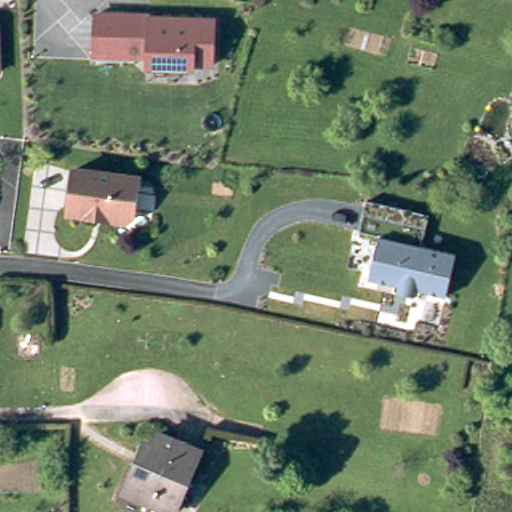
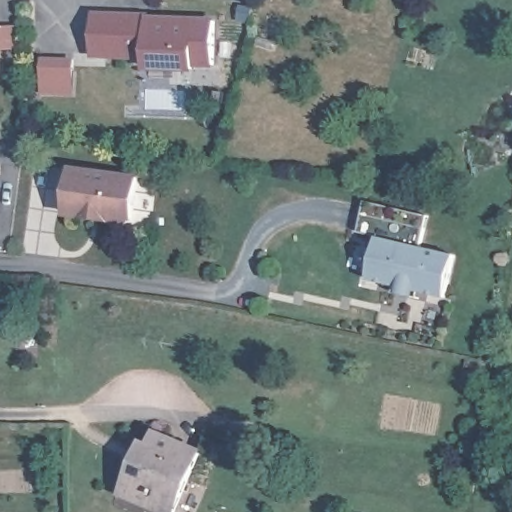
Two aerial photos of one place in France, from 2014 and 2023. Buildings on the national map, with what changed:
unchanged [(95,10),(146,15),(216,18),(213,66),(196,65),(197,70),(146,70),(146,59),(93,56),(95,10)]
unchanged [(3,70),(0,71),(0,37),(3,70)]
new [(41,95),(43,57),(75,59),(74,96),(41,95)]
unchanged [(113,221),(108,215),(94,213),(93,217),(68,215),(74,170),(139,178),(133,218),(127,223),(113,221)]
unchanged [(389,293),(390,285),(364,280),(374,237),(354,232),(362,201),(418,215),(424,216),(421,229),(417,247),(451,255),(441,297),(416,292),(414,299),(389,293)]
unchanged [(196,448),(169,508),(120,487),(130,463),(138,445),(144,448),(153,430),(196,448)]

